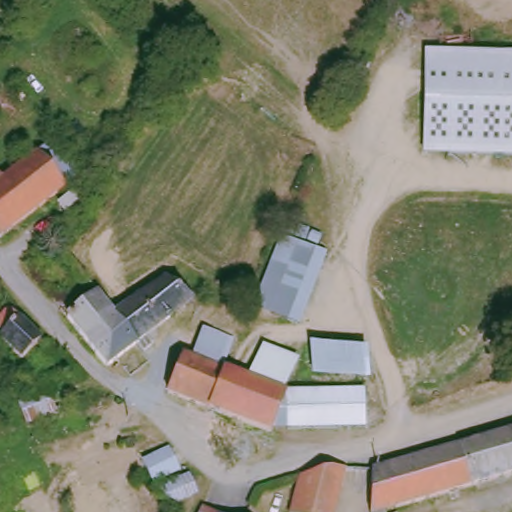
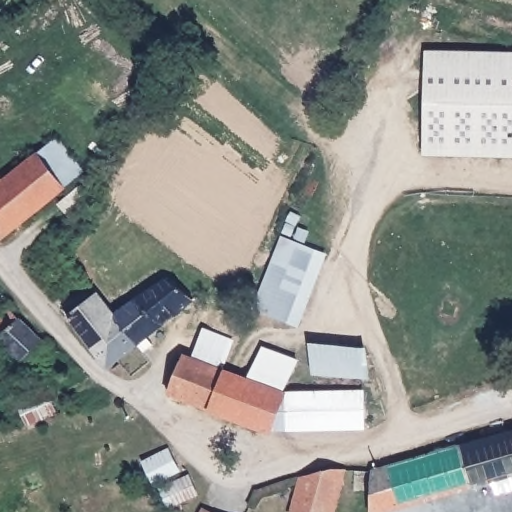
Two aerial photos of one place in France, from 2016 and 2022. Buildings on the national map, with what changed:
unchanged [(512,60),(512,158),(425,155),(430,57),(512,60)]
unchanged [(42,156),(60,142),(84,175),(65,189),(0,236),(0,172),(7,181),(42,156)]
unchanged [(60,207),(82,192),(84,194),(90,204),(69,219),(67,216),(60,207)]
unchanged [(302,327),(260,313),(285,244),(328,258),(302,327)]
unchanged [(117,315),(174,278),(198,306),(136,345),(117,315)]
unchanged [(136,345),(109,362),(95,341),(83,329),(75,310),(105,294),(114,310),(117,315),(136,345)]
unchanged [(0,341),(0,314),(5,308),(34,337),(14,355),(0,341)]
unchanged [(192,361),(204,330),(235,341),(223,371),(192,361)]
unchanged [(310,344),(369,350),(370,380),(314,376),(310,344)]
unchanged [(214,415),(172,396),(185,360),(230,374),(250,380),(265,345),(303,362),(289,390),(369,392),(368,435),(273,431),(267,439),(211,421),(214,415)]
unchanged [(373,512),(376,480),(512,430),(512,472),(409,512),(373,512)]
unchanged [(143,462),(170,448),(181,471),(154,485),(143,462)]
unchanged [(295,512),(305,480),(332,472),(350,471),(337,512),(295,512)]
unchanged [(191,475),(199,495),(167,508),(157,490),(191,475)]

